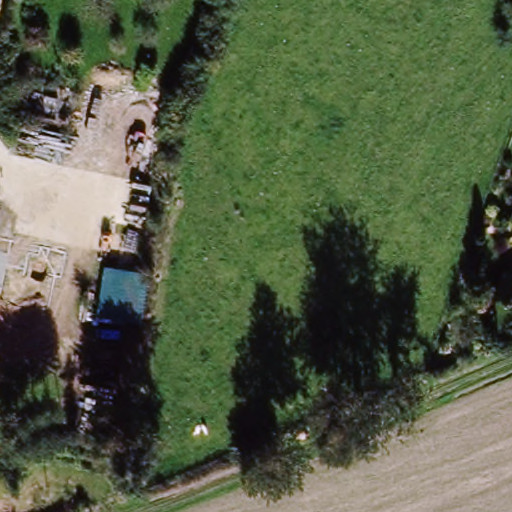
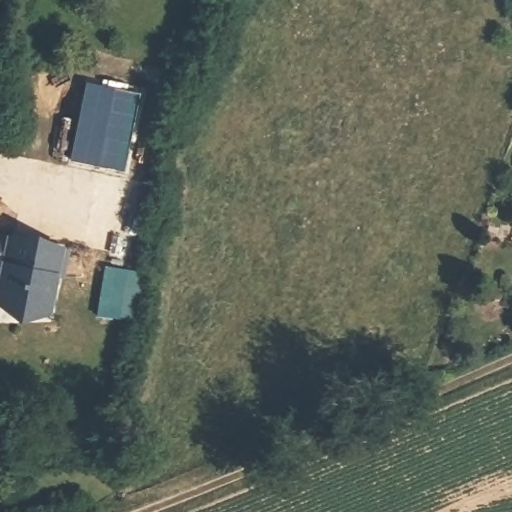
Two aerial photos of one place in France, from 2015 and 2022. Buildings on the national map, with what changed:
new [(142,94),(124,172),(69,159),(85,84),(142,94)]
new [(51,316),(0,306),(0,264),(1,259),(0,258),(0,235),(7,236),(65,247),(51,316)]
new [(150,275),(143,324),(96,317),(104,268),(150,275)]

